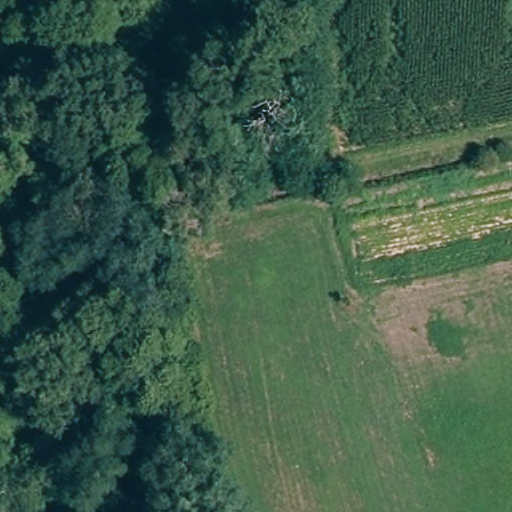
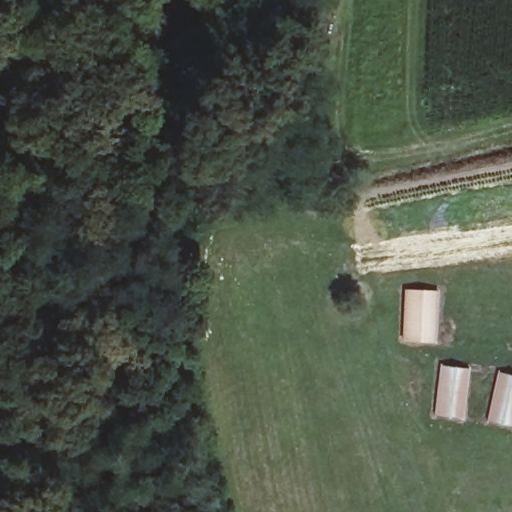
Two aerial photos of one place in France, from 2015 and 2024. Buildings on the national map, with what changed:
new [(439,292),(437,344),(404,342),(406,291),(439,292)]
new [(440,366),(468,369),(463,419),(435,416),(440,366)]
new [(512,375),(512,426),(487,421),(498,372),(511,374),(512,375)]

